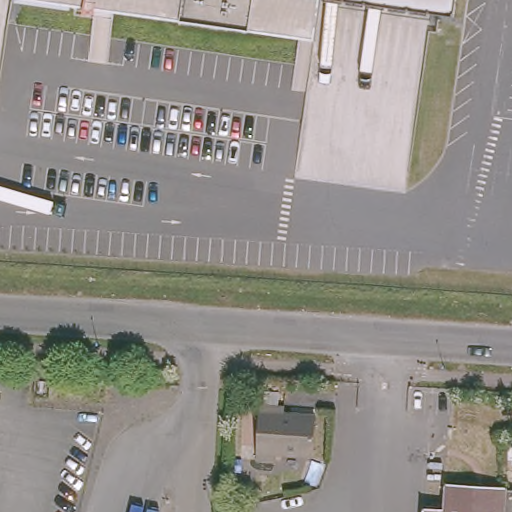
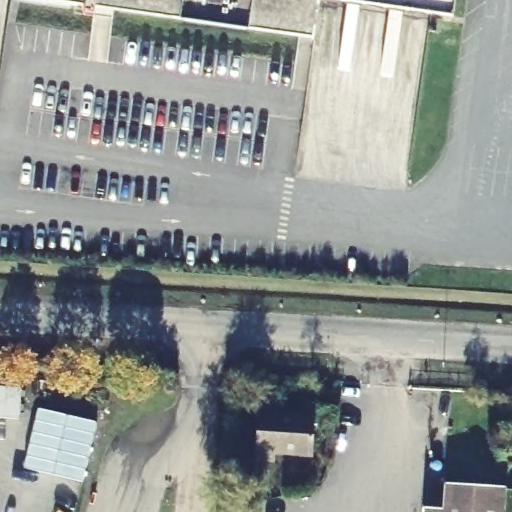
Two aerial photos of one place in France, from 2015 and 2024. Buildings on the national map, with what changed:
unchanged [(15,1),(16,0),(320,0),(313,44),(15,1)]
unchanged [(343,0),(455,0),(454,15),(343,0)]
unchanged [(257,406),(279,405),(279,413),(315,415),(312,465),(255,460),(257,406)]
new [(23,467),(39,408),(97,422),(83,481),(23,467)]
unchanged [(439,480),(500,484),(500,490),(499,512),(439,512),(439,510),(439,480)]
unchanged [(512,512),(499,512),(500,490),(512,490),(512,512)]
unchanged [(416,510),(439,510),(439,512),(416,512),(416,510)]

